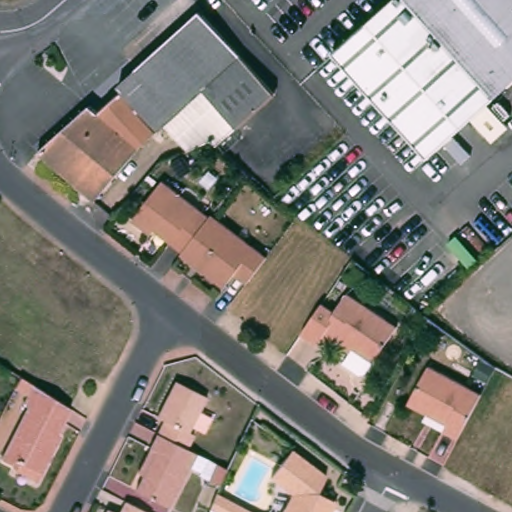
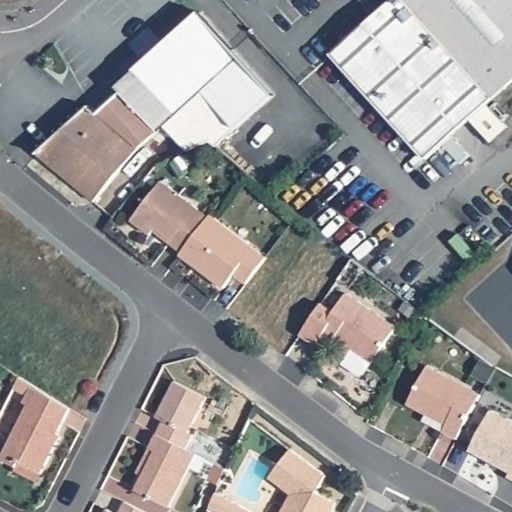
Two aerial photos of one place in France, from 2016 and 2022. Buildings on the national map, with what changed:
unchanged [(470,120),(428,158),(333,53),(390,0),(512,0),(512,82),(494,97),(487,104),(507,128),(491,142),(470,120)]
unchanged [(204,95),(178,119),(137,74),(164,50),(201,17),(274,98),(254,116),(238,132),(204,95)]
unchanged [(178,119),(160,135),(119,91),(137,74),(178,119)]
unchanged [(98,118),(121,99),(156,138),(139,153),(98,118)]
unchanged [(95,207),(36,157),(90,111),(98,118),(139,153),(95,207)]
unchanged [(180,251),(169,242),(171,239),(153,227),(148,234),(129,219),(159,180),(206,217),(180,251)]
unchanged [(208,215),(262,258),(243,283),(231,274),(222,287),(178,254),(180,251),(206,217),(208,215)]
unchanged [(394,324),(370,360),(363,369),(358,370),(341,358),(350,346),(335,335),(330,341),(318,333),(311,341),(296,329),(318,300),(319,300),(332,310),(345,291),(394,324)]
unchanged [(457,441),(443,433),(446,426),(408,405),(429,368),(480,397),(457,441)]
unchanged [(153,411),(170,375),(201,391),(184,427),(188,428),(182,442),(152,427),(159,413),(153,411)]
unchanged [(70,408),(54,439),(59,441),(48,463),(39,482),(13,471),(16,466),(1,458),(27,406),(22,404),(26,394),(13,388),(19,378),(70,408)]
new [(511,471),(470,449),(493,409),(512,419),(512,479),(509,478),(511,471)]
unchanged [(182,442),(202,452),(196,467),(185,461),(164,501),(132,485),(141,467),(133,464),(152,427),(182,442)]
unchanged [(329,512),(281,512),(290,495),(268,478),(290,451),(323,477),(315,493),(328,500),(334,503),(329,512)]
unchanged [(215,479),(204,473),(212,457),(223,463),(215,479)]
unchanged [(138,512),(120,512),(124,505),(138,512)]

